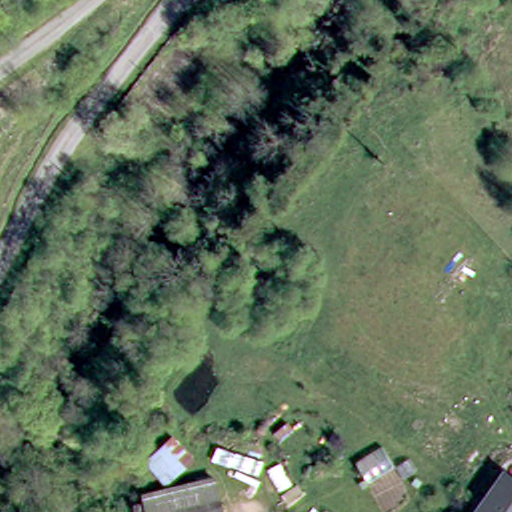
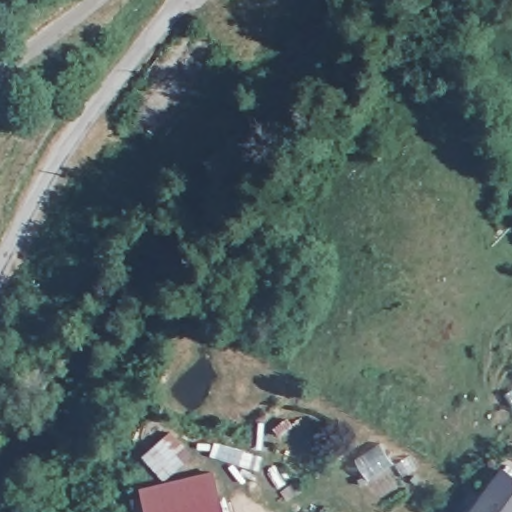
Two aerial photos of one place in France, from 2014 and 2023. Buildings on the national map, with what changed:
unchanged [(512,473),(512,512),(466,512),(501,464),(501,465),(512,473)]
unchanged [(214,473),(220,512),(148,512),(143,483),(214,473)]

